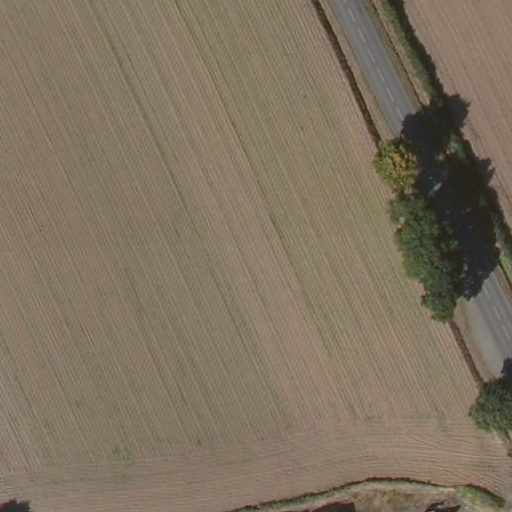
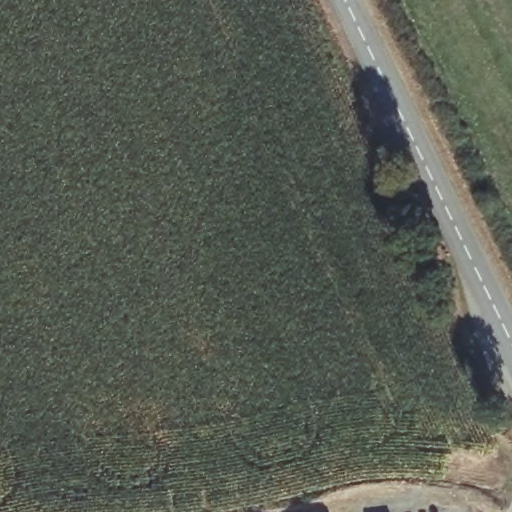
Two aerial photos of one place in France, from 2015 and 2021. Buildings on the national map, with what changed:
[]

